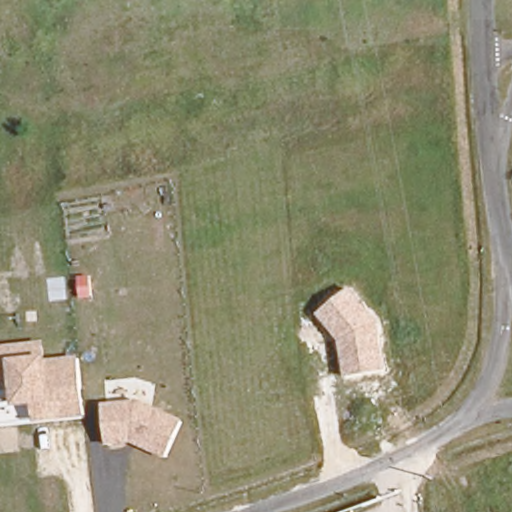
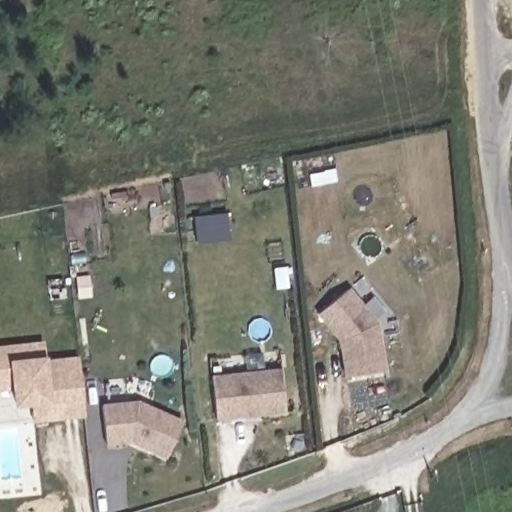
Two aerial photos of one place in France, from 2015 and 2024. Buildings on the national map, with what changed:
unchanged [(317,314),(349,287),(379,322),(387,370),(344,377),(339,340),(317,314)]
unchanged [(79,357),(85,416),(34,422),(31,405),(15,407),(13,391),(0,392),(0,346),(44,341),(45,357),(46,360),(79,357)]
new [(286,411),(216,417),(212,376),(282,368),(286,411)]
unchanged [(138,400),(183,420),(166,458),(131,443),(106,446),(102,404),(138,400)]

